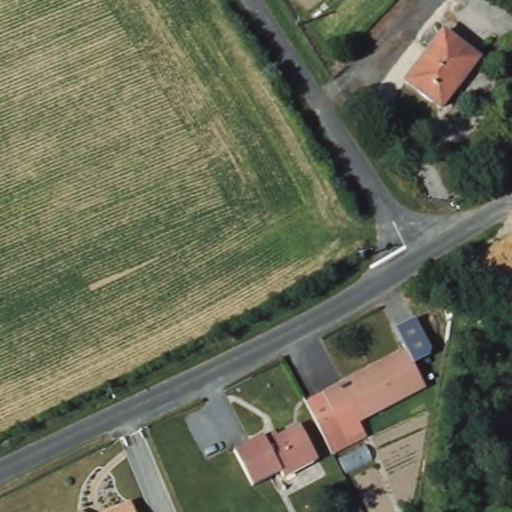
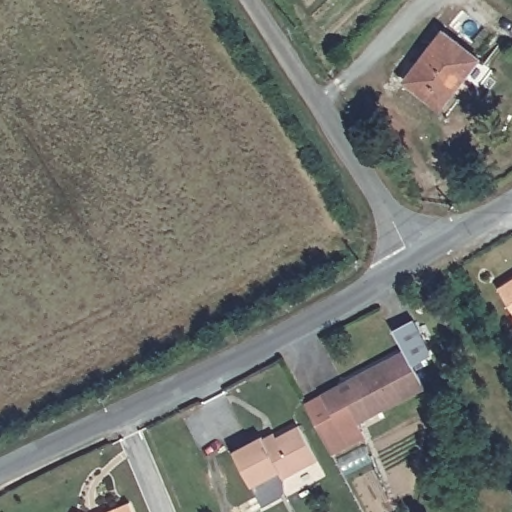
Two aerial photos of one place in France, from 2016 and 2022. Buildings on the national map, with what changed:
unchanged [(479,52),(454,82),(462,88),(445,108),(409,80),(449,30),(479,52)]
new [(512,279),(512,315),(496,289),(512,279)]
unchanged [(405,350),(393,329),(416,318),(435,354),(412,363),(405,350)]
unchanged [(424,388),(361,421),(367,437),(336,454),(307,400),(404,348),(424,388)]
unchanged [(259,438),(263,443),(294,422),(317,456),(284,477),(282,472),(255,488),(232,455),(259,438)]
unchanged [(136,512),(104,512),(131,500),(136,512)]
unchanged [(79,512),(80,510),(84,512),(79,512)]

